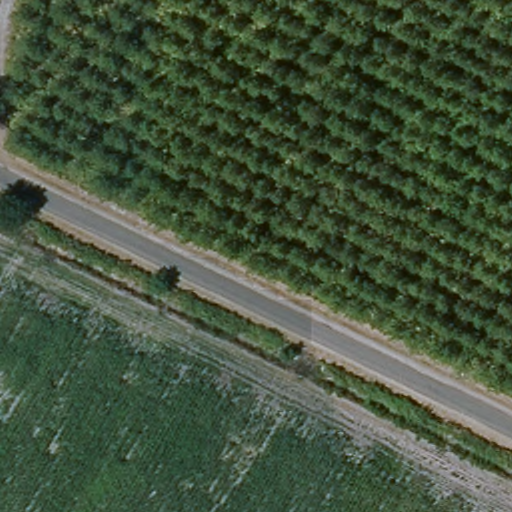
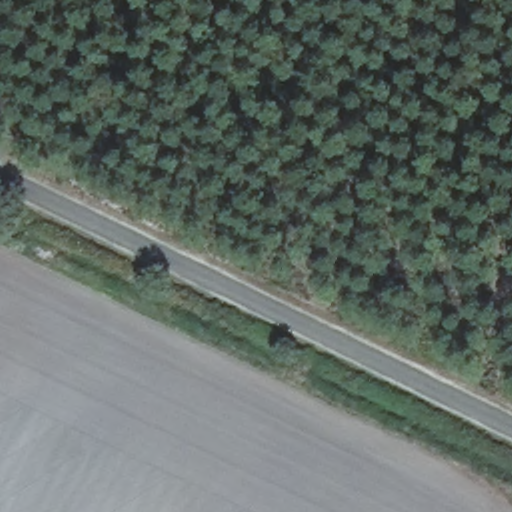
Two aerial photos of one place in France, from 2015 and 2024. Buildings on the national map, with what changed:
[]

